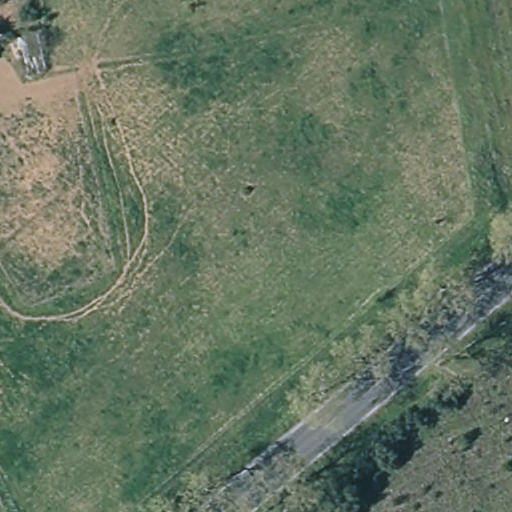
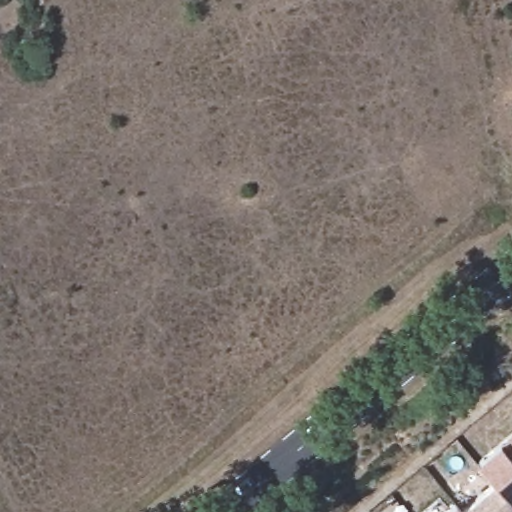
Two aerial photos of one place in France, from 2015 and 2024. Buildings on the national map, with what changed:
new [(494,482),(477,463),(512,434),(512,505),(494,482)]
new [(512,505),(512,508),(507,512),(462,512),(461,510),(494,482),(512,505)]
new [(461,510),(462,512),(446,512),(456,504),(461,510)]

